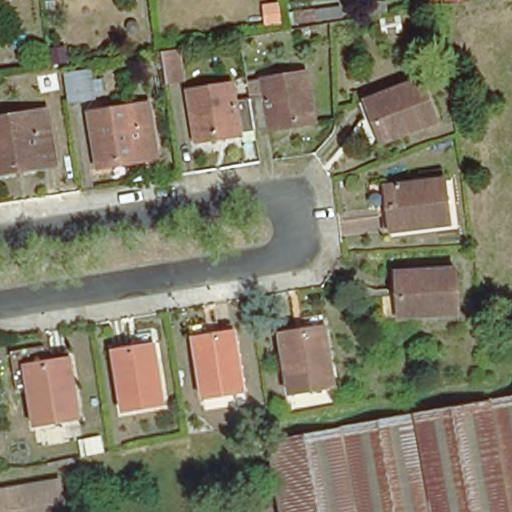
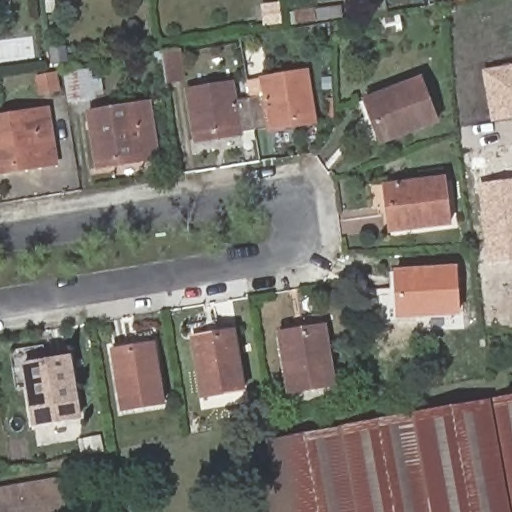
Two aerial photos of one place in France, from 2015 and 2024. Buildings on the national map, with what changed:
unchanged [(283,0),(285,19),(270,21),(268,0),(283,0)]
unchanged [(174,53),(178,81),(164,84),(160,55),(174,53)]
new [(490,123),(481,70),(512,65),(512,120),(490,123)]
unchanged [(92,99),(66,103),(62,75),(87,71),(92,99)]
unchanged [(264,96),(261,79),(305,71),(313,123),(254,133),(248,100),(264,96)]
unchanged [(435,122),(380,145),(362,102),(418,81),(435,122)]
unchanged [(254,133),(192,144),(185,91),(233,84),(235,101),(248,100),(254,133)]
unchanged [(157,159),(95,169),(86,114),(149,104),(157,159)]
unchanged [(0,175),(0,117),(46,110),(55,166),(0,175)]
new [(487,264),(476,184),(512,179),(512,260),(487,264)]
unchanged [(450,226),(389,234),(385,187),(443,180),(450,226)]
unchanged [(456,317),(396,319),(395,272),(453,269),(456,317)]
unchanged [(332,386),(287,393),(278,335),(323,328),(332,386)]
unchanged [(241,391),(200,397),(192,339),(232,333),(241,391)]
unchanged [(161,404),(121,411),(111,353),(152,346),(161,404)]
unchanged [(78,419),(34,426),(25,367),(68,360),(78,419)]
unchanged [(268,444),(512,400),(512,512),(280,512),(268,444)]
unchanged [(66,512),(0,512),(0,486),(58,475),(66,512)]

